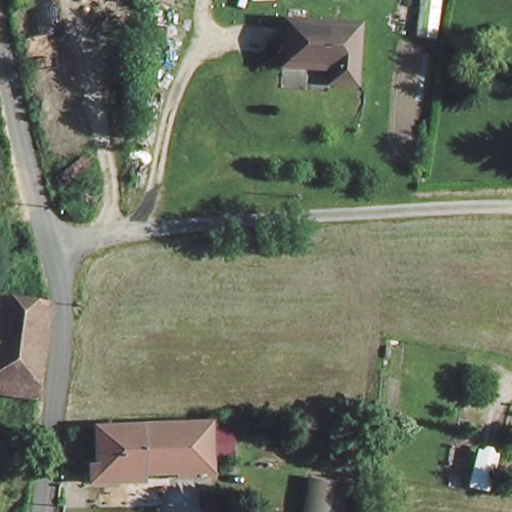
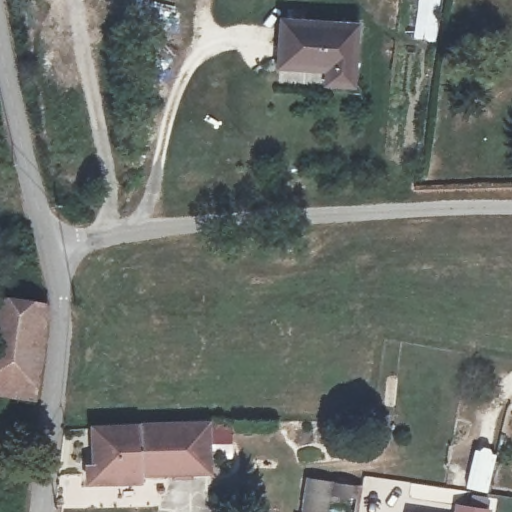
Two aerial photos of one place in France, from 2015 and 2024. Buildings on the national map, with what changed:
unchanged [(283,20),(353,25),(351,81),(326,83),(326,68),(281,65),(283,20)]
unchanged [(34,404),(0,397),(0,291),(51,300),(34,404)]
unchanged [(96,470),(92,424),(166,424),(170,471),(96,470)]
unchanged [(166,424),(204,424),(206,472),(170,471),(166,424)]
unchanged [(308,474),(361,486),(357,512),(301,512),(308,474)]
new [(454,504),(492,509),(491,512),(452,512),(454,504)]

